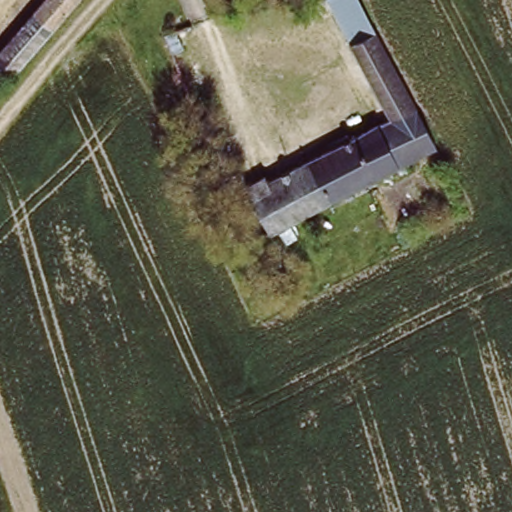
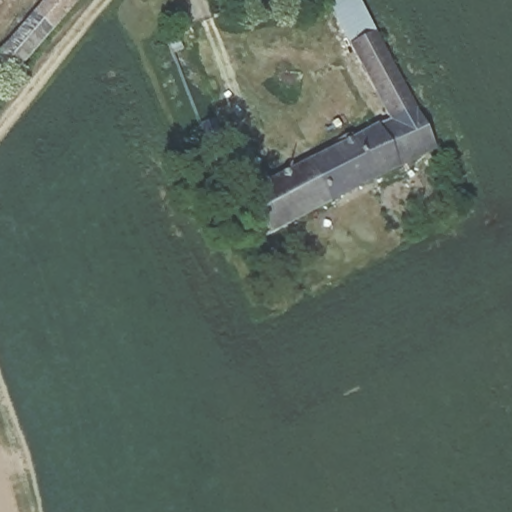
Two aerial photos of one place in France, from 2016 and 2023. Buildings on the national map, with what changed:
unchanged [(77,0),(0,90),(0,50),(45,0),(77,0)]
unchanged [(330,0),(363,0),(437,147),(260,239),(238,195),(395,118),(330,0)]
unchanged [(228,160),(218,165),(198,124),(208,119),(228,160)]

